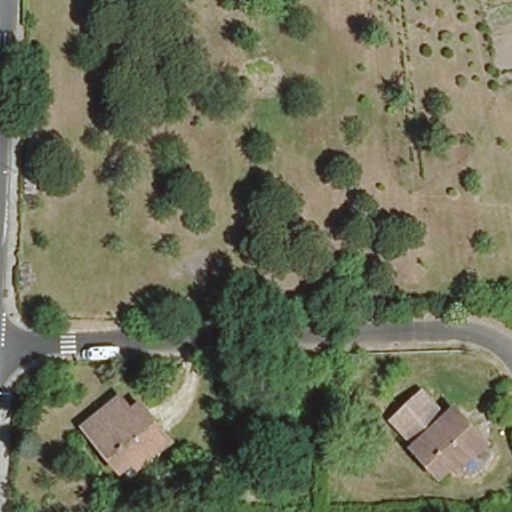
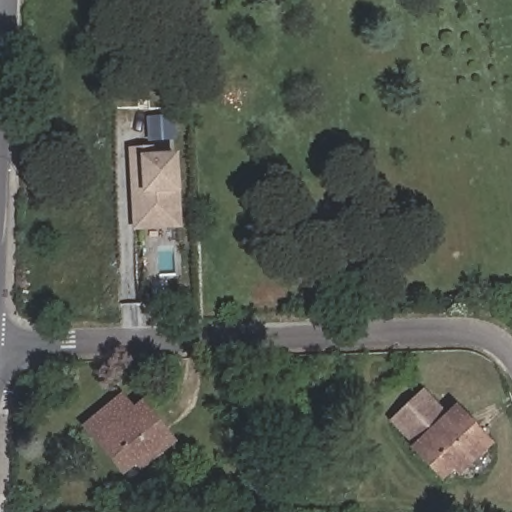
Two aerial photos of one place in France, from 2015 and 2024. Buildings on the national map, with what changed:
new [(134,227),(133,199),(145,198),(144,181),(133,182),(132,150),(149,148),(150,159),(174,158),(177,226),(134,227)]
unchanged [(89,417),(123,385),(143,404),(150,397),(173,419),(135,458),(89,417)]
unchanged [(415,448),(419,444),(397,424),(427,391),(453,418),(465,406),(496,434),(451,481),(415,448)]

